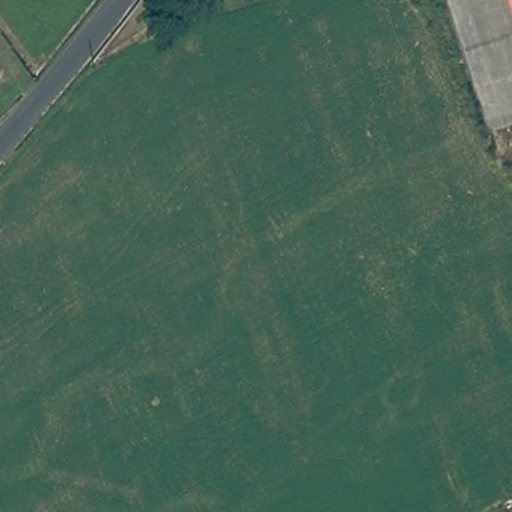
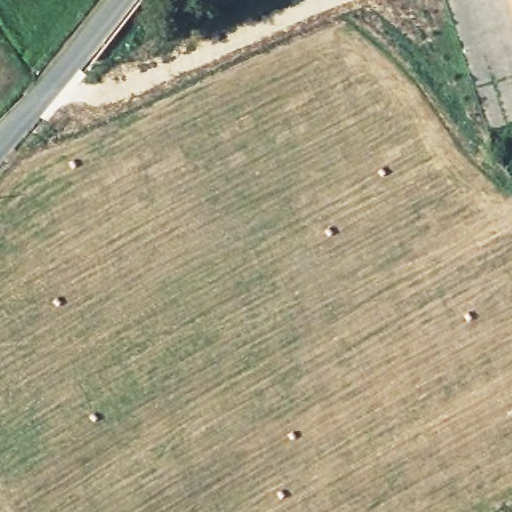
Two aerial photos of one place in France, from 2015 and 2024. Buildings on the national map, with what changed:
unchanged [(507,0),(512,0),(512,17),(507,0)]

